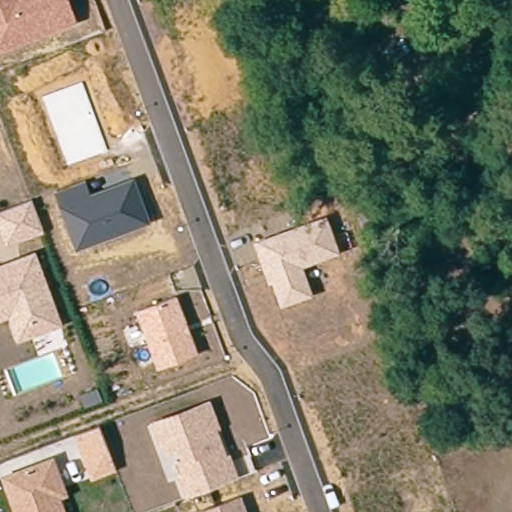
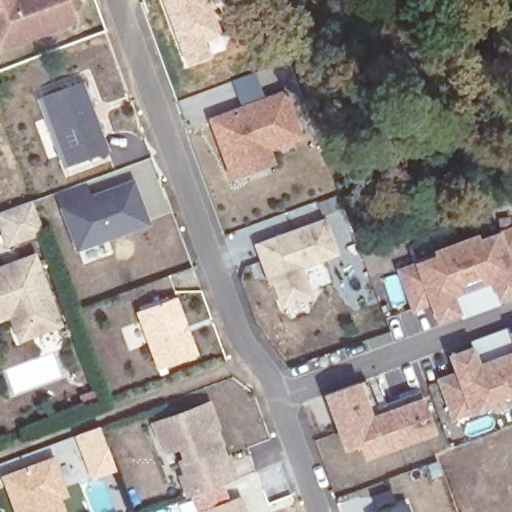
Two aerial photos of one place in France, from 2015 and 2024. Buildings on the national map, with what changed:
unchanged [(77,22),(0,51),(0,0),(69,0),(77,22)]
new [(219,1),(215,2),(228,47),(185,67),(161,0),(219,0),(219,1)]
unchanged [(41,97),(82,83),(107,151),(67,165),(41,97)]
new [(228,180),(207,118),(286,89),(305,138),(272,149),(276,164),(228,180)]
unchanged [(60,208),(54,193),(85,181),(90,193),(134,177),(150,224),(75,250),(60,208)]
unchanged [(0,212),(32,199),(44,234),(5,247),(0,233),(0,212)]
unchanged [(280,308),(271,285),(268,286),(253,243),(327,217),(340,255),(302,268),(313,297),(280,308)]
new [(395,268),(411,261),(434,253),(433,249),(477,232),(480,236),(500,229),(512,225),(512,293),(497,298),(500,303),(461,318),(458,312),(435,321),(429,304),(412,312),(395,268)]
unchanged [(7,318),(0,321),(0,264),(35,250),(62,325),(16,342),(7,318)]
unchanged [(135,312),(177,297),(199,355),(156,370),(135,312)]
new [(491,410),(489,405),(469,413),(452,419),(438,377),(455,371),(449,353),(470,346),(469,340),(508,325),(509,333),(512,332),(512,403),(491,410)]
new [(359,380),(365,380),(375,406),(419,390),(421,396),(435,431),(364,459),(358,444),(344,451),(322,394),(359,380)]
unchanged [(176,474),(180,473),(172,451),(162,454),(151,421),(210,399),(240,478),(185,498),(176,474)]
unchanged [(75,435),(99,426),(116,472),(90,480),(75,435)]
unchanged [(0,476),(55,456),(70,495),(62,500),(67,512),(13,512),(0,477),(0,476)]
unchanged [(242,496),(248,512),(196,512),(196,511),(242,496)]
new [(418,512),(399,512),(416,506),(418,512)]

